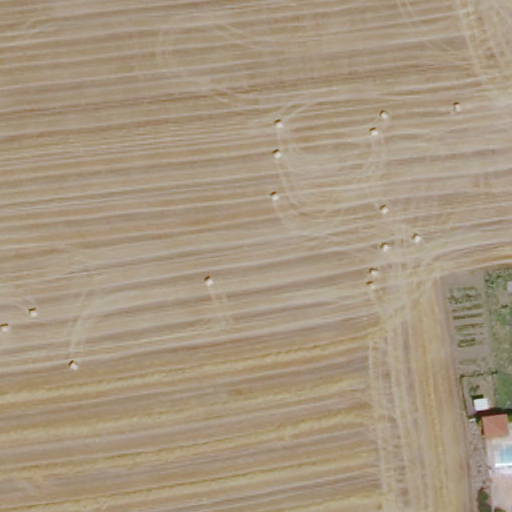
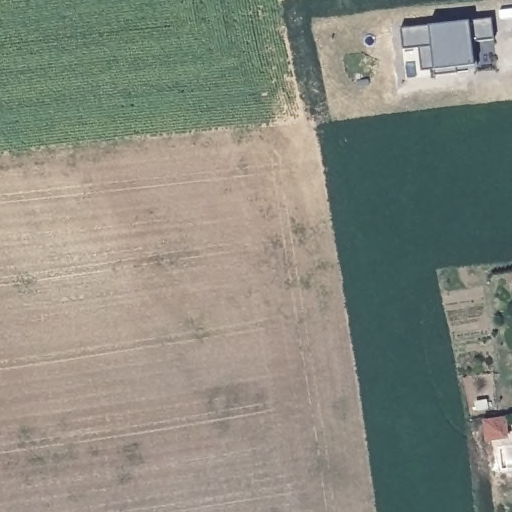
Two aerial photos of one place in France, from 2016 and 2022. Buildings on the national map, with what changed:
new [(491,19),(493,39),(471,42),(474,66),(456,67),(456,75),(436,76),(431,46),(404,49),(402,29),(491,19)]

